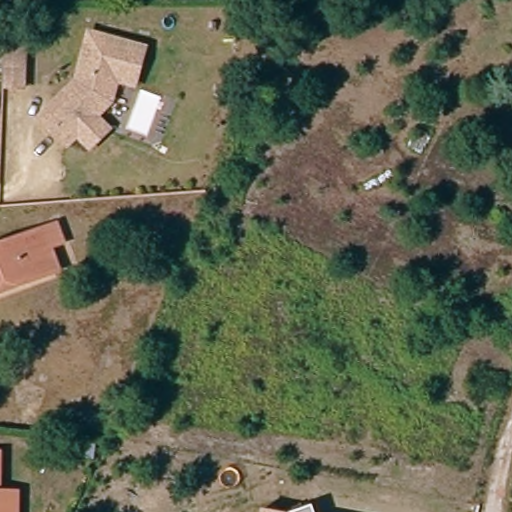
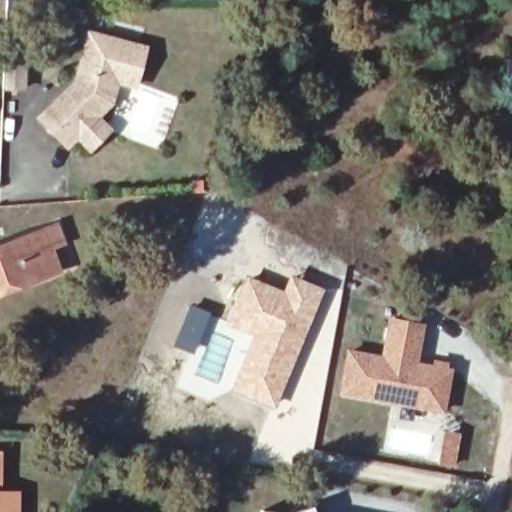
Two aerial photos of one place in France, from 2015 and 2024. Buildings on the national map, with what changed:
unchanged [(107,147),(94,135),(84,145),(57,117),(85,89),(93,81),(105,32),(160,46),(151,84),(133,79),(127,102),(113,116),(126,129),(107,147)]
new [(1,88),(2,43),(27,45),(26,90),(1,88)]
demolished [(40,84),(20,84),(19,84),(20,52),(20,43),(40,43),(40,84)]
unchanged [(36,227),(52,222),(58,246),(43,247),(53,276),(20,287),(0,293),(0,240),(36,227)]
new [(284,292),(291,277),(320,288),(273,402),(233,387),(257,333),(229,321),(247,278),(284,292)]
new [(381,352),(387,316),(424,322),(418,361),(431,363),(432,358),(448,361),(447,366),(452,367),(446,413),(337,394),(346,347),(381,352)]
unchanged [(8,493),(8,512),(0,512),(0,493),(8,493)]
unchanged [(311,505),(314,512),(291,512),(311,505)]
unchanged [(261,508),(280,512),(260,512),(261,508)]

